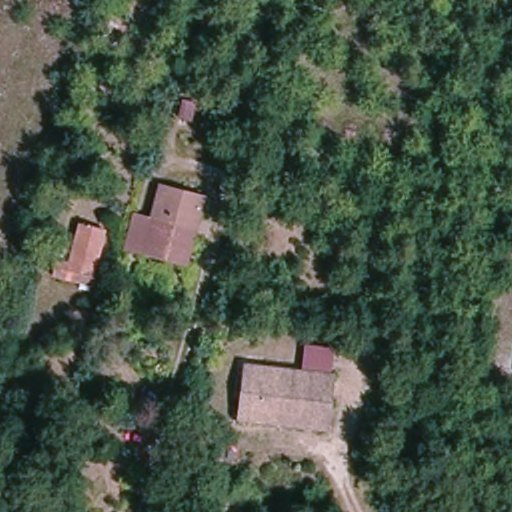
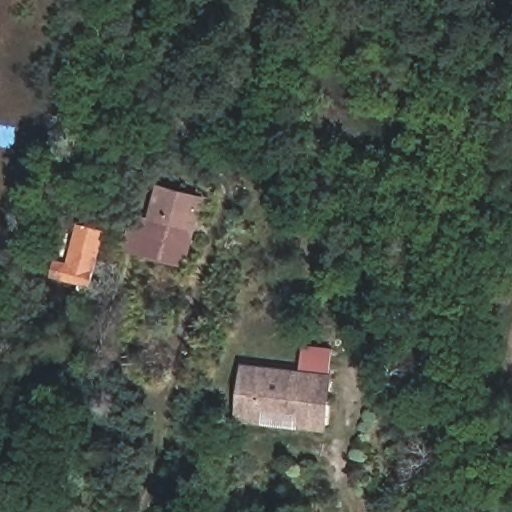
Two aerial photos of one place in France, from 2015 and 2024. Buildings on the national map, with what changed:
unchanged [(130,85),(135,62),(150,65),(144,89),(130,85)]
unchanged [(190,122),(177,117),(181,98),(195,102),(190,122)]
unchanged [(166,260),(147,255),(125,250),(134,214),(155,219),(163,186),(207,197),(193,254),(190,265),(166,260)]
unchanged [(105,229),(92,284),(51,275),(56,258),(70,261),(79,223),(105,229)]
unchanged [(320,387),(320,395),(297,394),(295,410),(237,407),(239,369),(326,372),(326,387),(320,387)]
unchanged [(325,428),(236,426),(237,407),(295,410),(297,394),(320,395),(320,387),(326,387),(325,428)]

